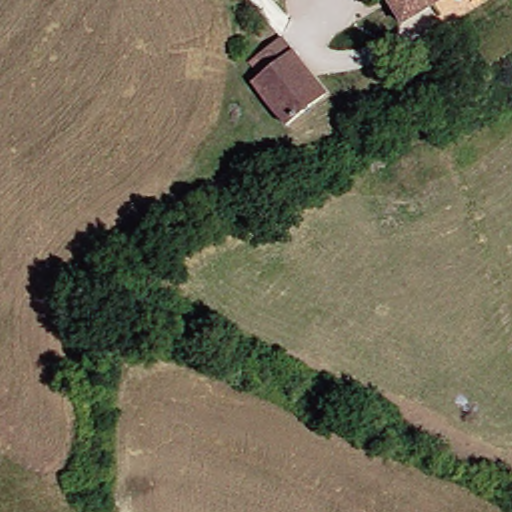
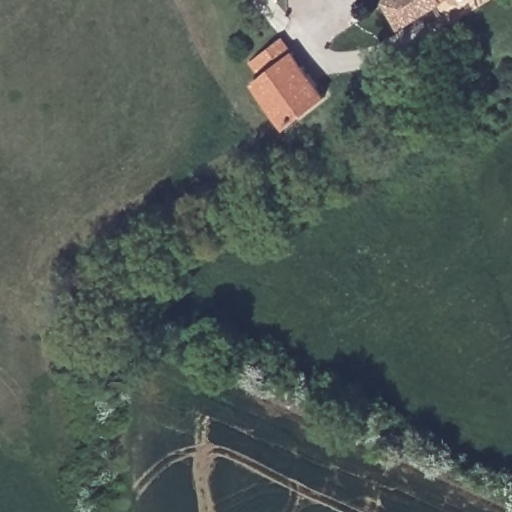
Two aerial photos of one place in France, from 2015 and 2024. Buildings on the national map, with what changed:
unchanged [(434,5),(441,16),(425,25),(419,14),(396,28),(380,2),(384,0),(442,0),(434,5)]
unchanged [(275,125),(240,82),(280,53),(312,92),(275,125)]

